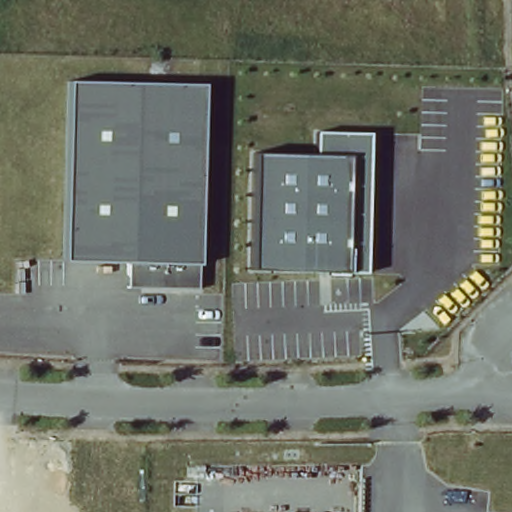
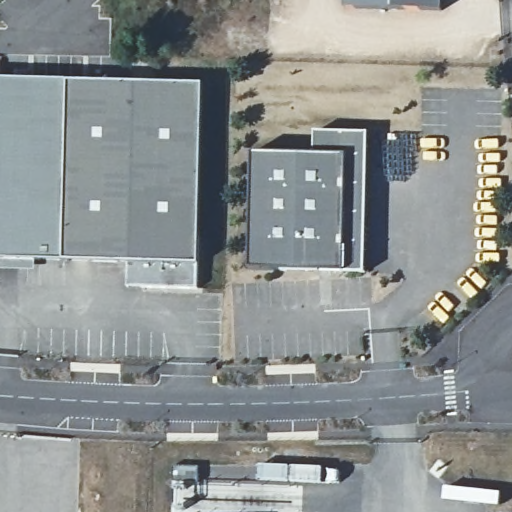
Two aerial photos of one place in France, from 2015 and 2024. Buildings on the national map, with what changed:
new [(437,9),(340,10),(340,0),(437,0),(437,9)]
new [(66,259),(31,259),(32,269),(0,269),(0,80),(72,81),(66,259)]
unchanged [(197,262),(197,288),(129,288),(128,261),(66,259),(72,81),(205,85),(197,262)]
unchanged [(316,155),(316,132),(370,135),(366,272),(346,271),(252,270),(253,155),(316,155)]

